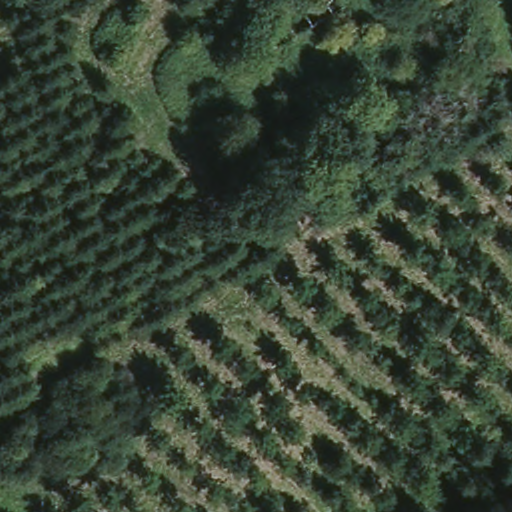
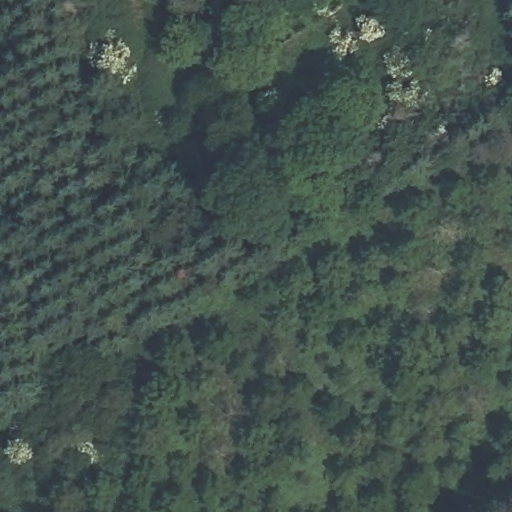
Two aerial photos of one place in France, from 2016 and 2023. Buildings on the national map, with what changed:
unchanged [(334,0),(336,4),(283,47),(265,23),(295,0),(334,0)]

